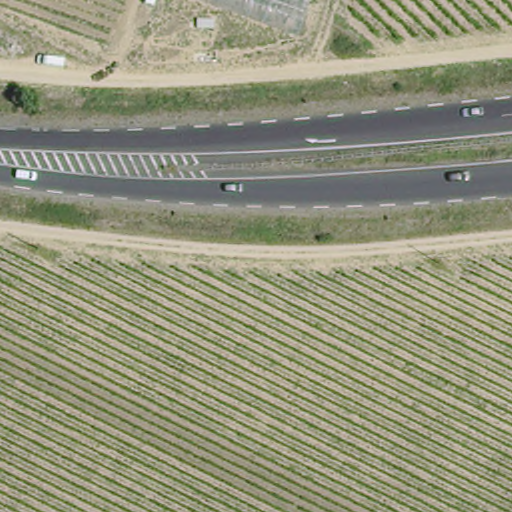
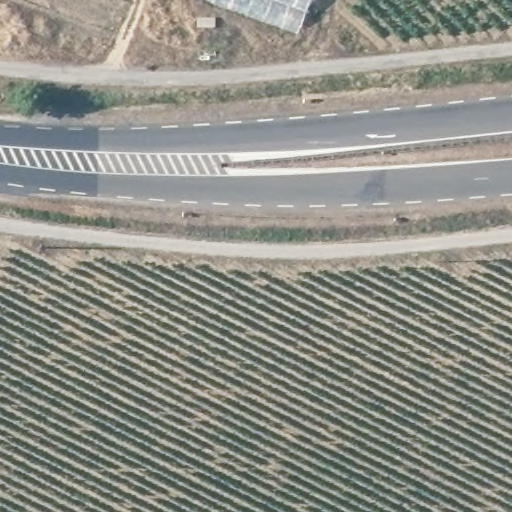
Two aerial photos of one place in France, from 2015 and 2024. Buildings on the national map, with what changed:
unchanged [(301,26),(228,0),(310,0),(301,26)]

